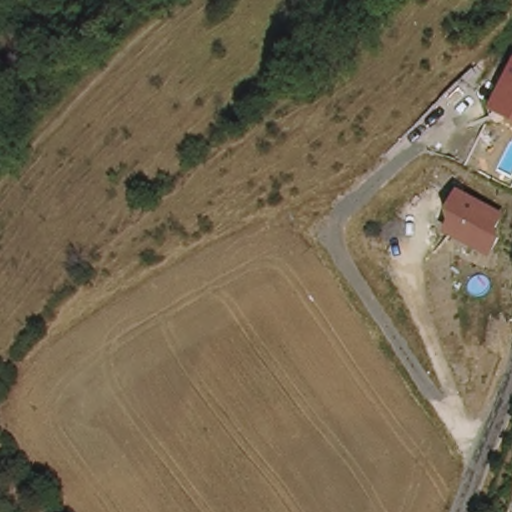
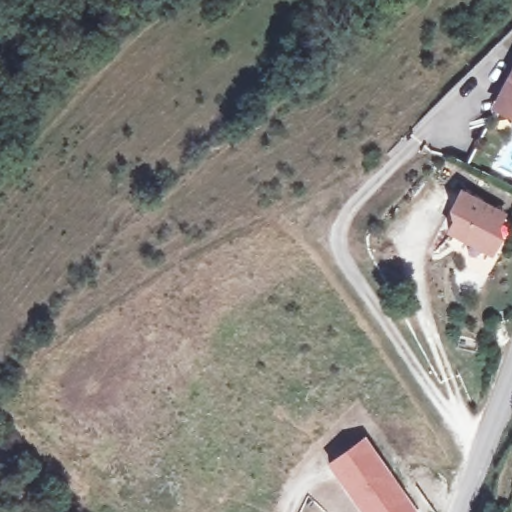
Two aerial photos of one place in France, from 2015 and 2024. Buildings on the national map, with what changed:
unchanged [(489,111),(512,67),(512,121),(489,111)]
unchanged [(509,213),(502,229),(504,237),(494,259),(446,234),(452,221),(449,211),(460,189),(509,213)]
new [(406,499),(386,512),(364,512),(332,464),(368,441),(406,499)]

